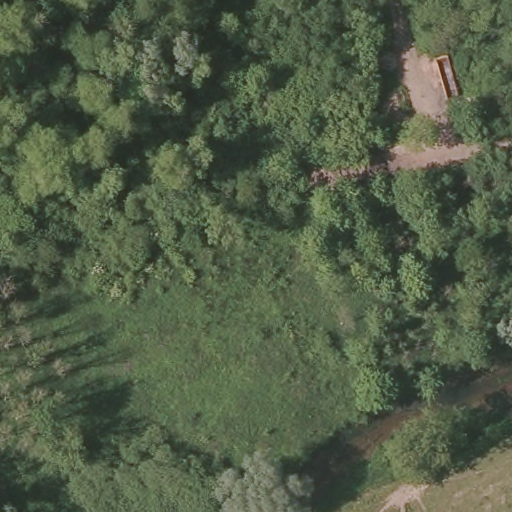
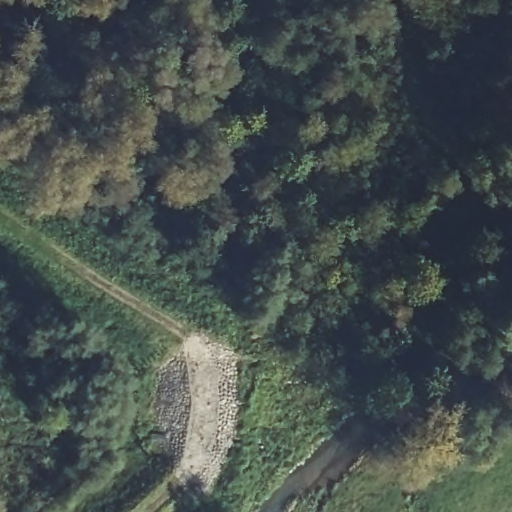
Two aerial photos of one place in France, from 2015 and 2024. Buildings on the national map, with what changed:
[]

